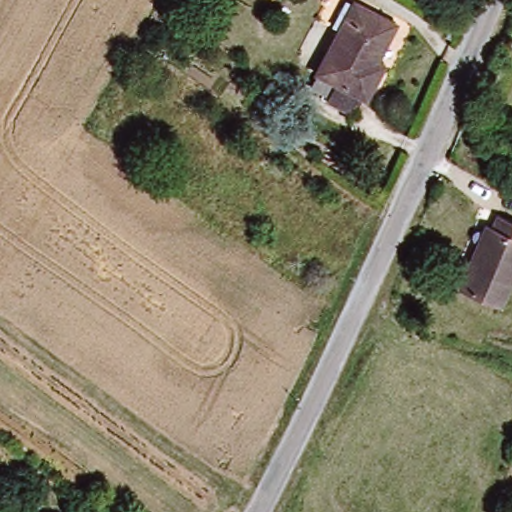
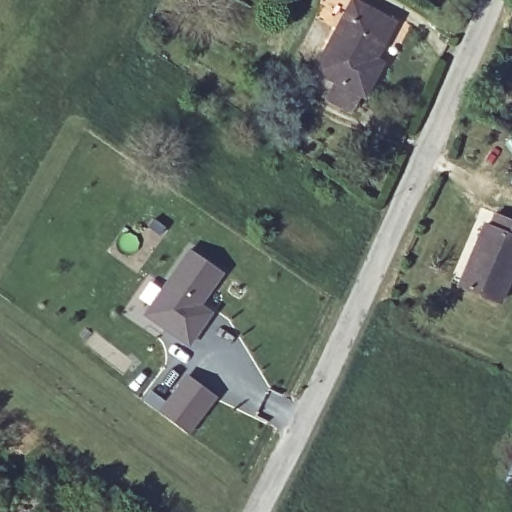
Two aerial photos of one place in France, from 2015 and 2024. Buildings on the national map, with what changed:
unchanged [(324,71),(361,0),(401,21),(382,57),(391,61),(372,96),(369,95),(360,111),(335,98),(336,95),(316,84),(324,71)]
unchanged [(512,295),(507,306),(468,289),(486,247),(494,229),(500,232),(506,217),(512,219),(512,295)]
new [(201,327),(184,349),(141,318),(188,254),(220,279),(196,310),(207,319),(201,327)]
new [(185,378),(212,398),(185,435),(157,414),(185,378)]

